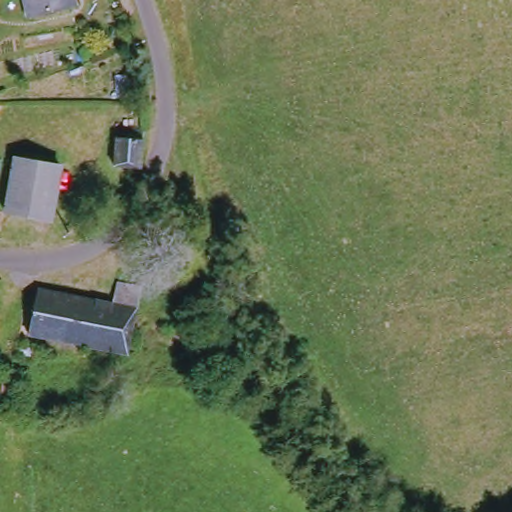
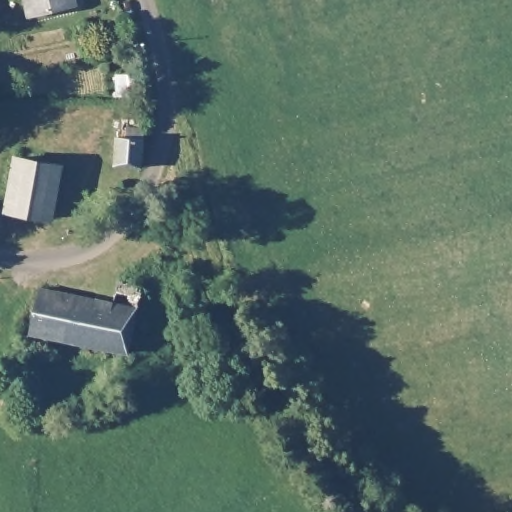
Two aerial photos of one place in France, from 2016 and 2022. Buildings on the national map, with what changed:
unchanged [(68,2),(24,14),(21,0),(67,0),(68,2)]
unchanged [(118,163),(120,138),(129,139),(130,129),(150,126),(151,127),(144,164),(118,163)]
unchanged [(5,211),(12,160),(59,167),(53,204),(50,220),(41,219),(5,211)]
unchanged [(25,331),(37,291),(109,305),(112,286),(116,285),(139,292),(139,294),(132,308),(120,350),(25,331)]

